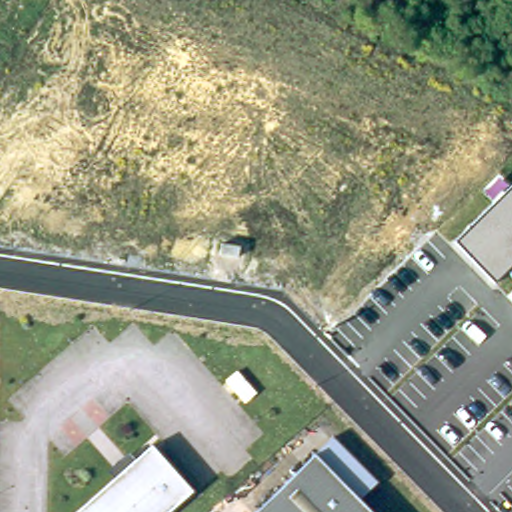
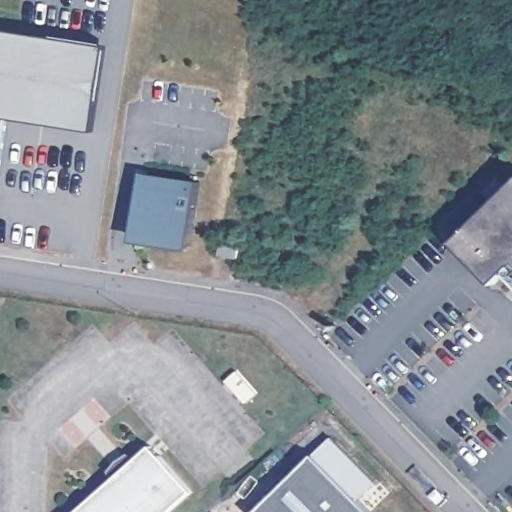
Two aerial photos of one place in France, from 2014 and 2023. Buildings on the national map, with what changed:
new [(110,46),(98,130),(8,116),(0,115),(0,28),(110,46)]
new [(0,168),(0,115),(8,116),(0,168)]
new [(200,181),(191,249),(133,241),(143,172),(200,181)]
unchanged [(457,243),(512,188),(512,271),(498,286),(457,243)]
unchanged [(111,476),(105,469),(115,459),(126,451),(133,458),(149,444),(189,490),(164,512),(70,512),(111,476)]
unchanged [(254,509),(316,449),(377,512),(256,512),(254,509)]

